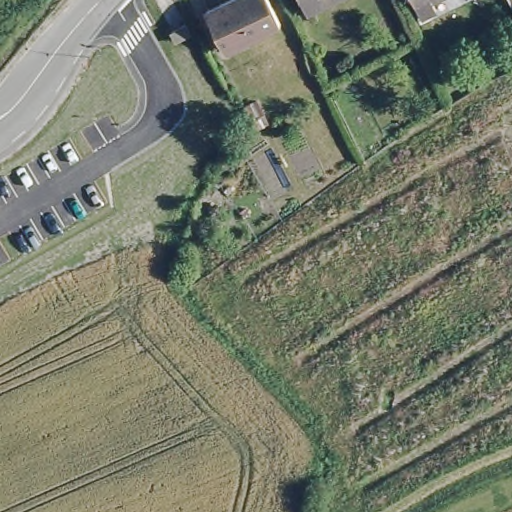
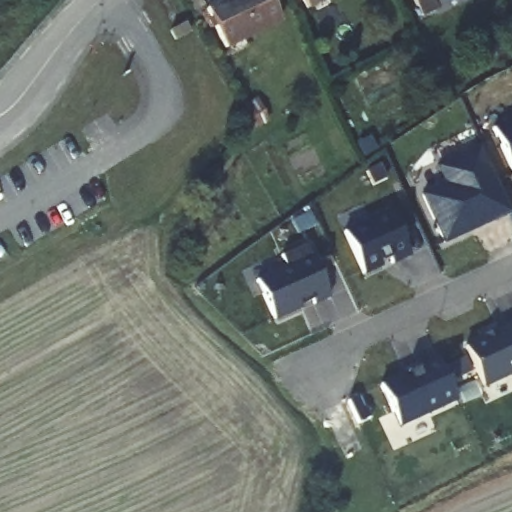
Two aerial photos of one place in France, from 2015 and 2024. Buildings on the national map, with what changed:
unchanged [(200,8),(219,0),(266,0),(277,21),(219,48),(200,8)]
unchanged [(298,0),(320,0),(302,8),(298,0)]
unchanged [(419,18),(410,0),(436,0),(430,3),(433,12),(419,18)]
new [(490,120),(512,111),(512,167),(510,167),(490,120)]
new [(512,214),(482,227),(480,223),(475,225),(475,228),(444,242),(422,196),(445,185),(437,168),(465,155),(468,159),(484,152),(512,214)]
new [(344,233),(390,212),(410,256),(392,264),(390,260),(380,265),(381,266),(363,274),(344,233)]
new [(313,303),(311,300),(300,305),(300,307),(273,319),(255,280),(285,267),(280,256),(305,244),(329,296),(313,303)]
new [(484,389),(464,344),(512,322),(512,376),(484,389)]
new [(419,367),(418,365),(436,357),(455,400),(399,426),(380,385),(419,367)]

